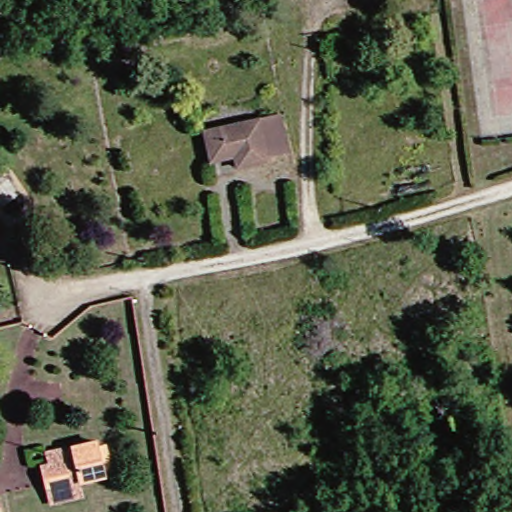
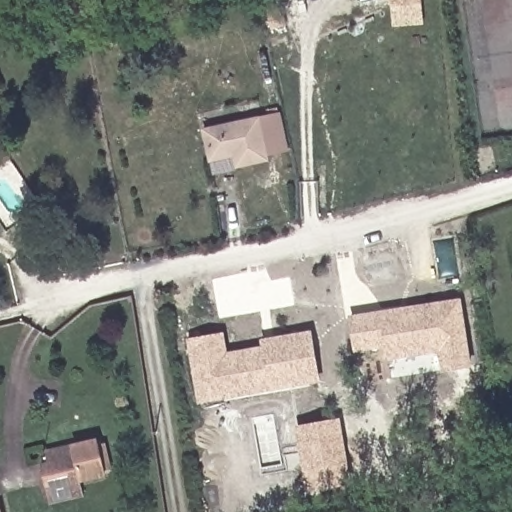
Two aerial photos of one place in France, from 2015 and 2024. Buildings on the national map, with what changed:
unchanged [(57,72),(54,57),(76,49),(81,65),(57,72)]
unchanged [(240,176),(234,160),(210,165),(205,136),(283,115),(292,152),(276,156),(277,165),(240,176)]
new [(470,367),(441,372),(438,352),(386,361),(384,347),(353,352),(347,316),(462,299),(470,367)]
new [(321,382),(197,403),(186,338),(225,332),(227,352),(261,347),(260,339),(312,330),(321,382)]
new [(352,486),(306,493),(295,427),(341,417),(352,486)]
unchanged [(43,490),(40,467),(50,465),(50,452),(106,441),(114,476),(43,490)]
unchanged [(3,510),(4,512),(0,512),(0,510),(3,510)]

